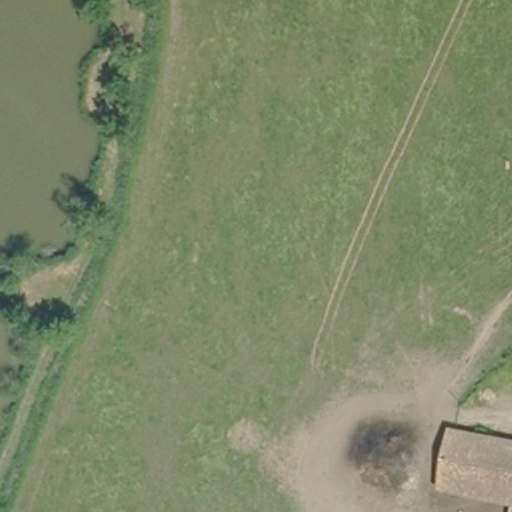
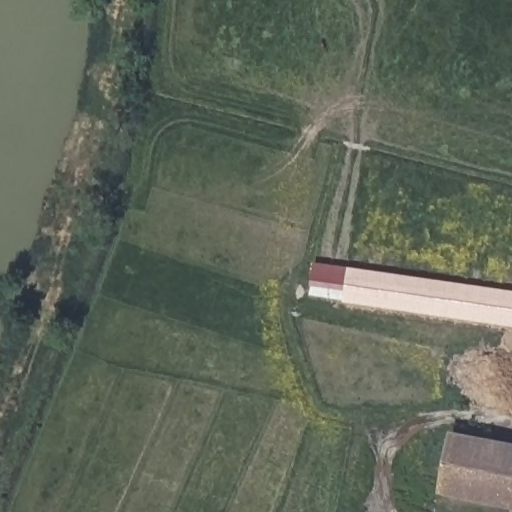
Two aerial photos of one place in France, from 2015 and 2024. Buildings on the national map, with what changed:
new [(345,302),(347,291),(310,286),(314,265),(349,270),(512,293),(512,326),(345,302)]
unchanged [(512,436),(512,512),(510,512),(511,511),(434,494),(453,425),(512,436)]

